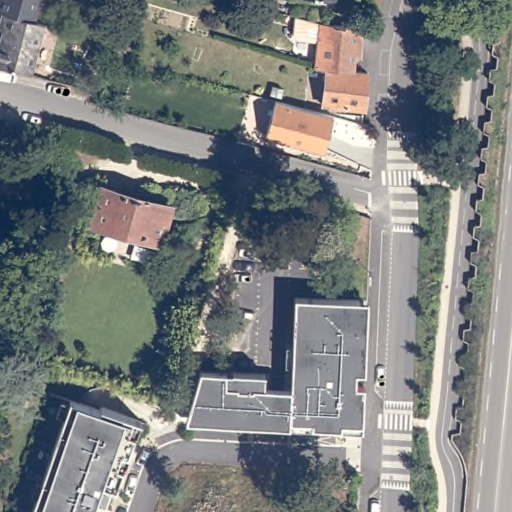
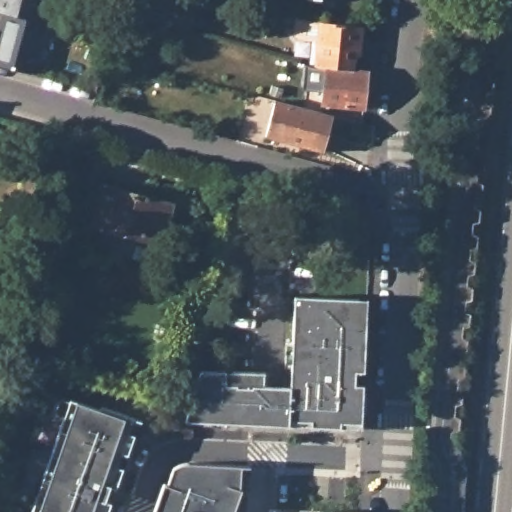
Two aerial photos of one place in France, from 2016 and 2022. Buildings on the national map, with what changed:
unchanged [(35,20),(3,11),(0,11),(0,0),(40,0),(35,20)]
unchanged [(3,31),(0,31),(0,22),(3,11),(35,20),(45,23),(32,73),(0,64),(0,43),(3,31)]
unchanged [(361,31),(358,76),(326,73),(316,72),(318,45),(297,44),(293,39),(296,21),(319,27),(361,31)]
unchanged [(358,76),(368,76),(365,114),(324,110),(326,73),(358,76)]
unchanged [(331,120),(321,157),(265,142),(275,105),(331,120)]
unchanged [(103,192),(170,210),(161,243),(94,225),(103,192)]
unchanged [(27,224),(23,237),(12,234),(16,221),(27,224)]
unchanged [(9,236),(2,265),(0,265),(0,234),(9,236)]
unchanged [(14,273),(9,291),(0,289),(0,273),(1,269),(14,273)]
unchanged [(264,376),(263,386),(290,384),(296,296),(365,302),(362,428),(186,420),(201,369),(264,376)]
unchanged [(140,421),(107,512),(38,512),(78,401),(140,421)]
new [(168,485),(172,469),(181,465),(191,463),(239,467),(248,466),(247,490),(240,490),(233,512),(154,512),(164,484),(168,485)]

